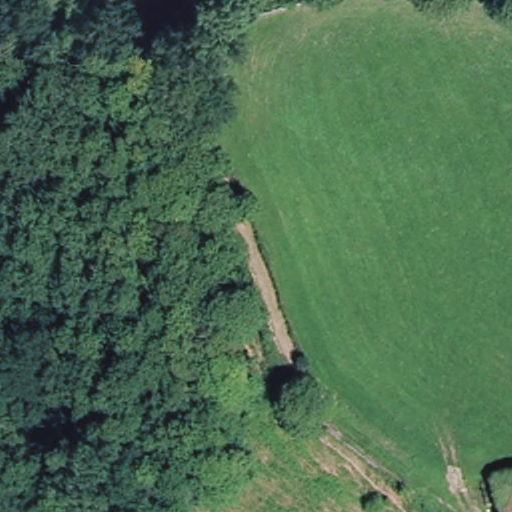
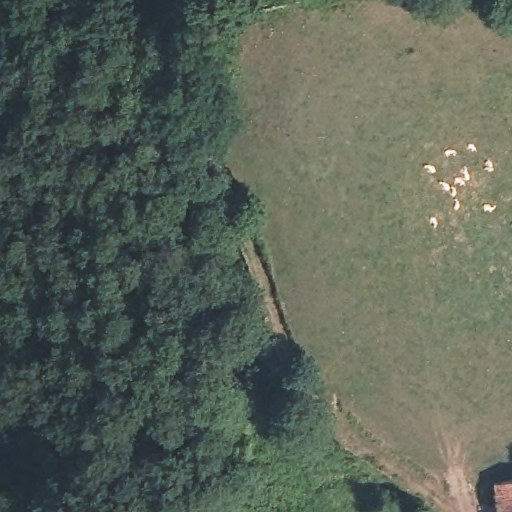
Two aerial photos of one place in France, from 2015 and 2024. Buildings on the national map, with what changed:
unchanged [(512,512),(498,512),(492,479),(512,477),(512,512)]

